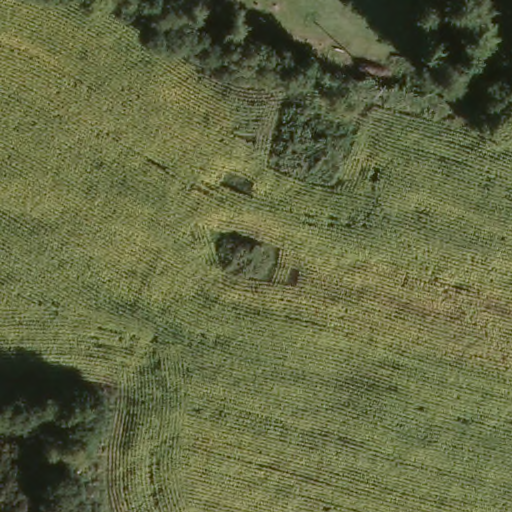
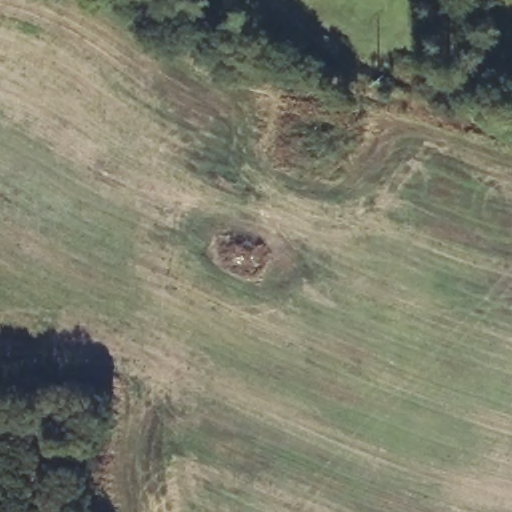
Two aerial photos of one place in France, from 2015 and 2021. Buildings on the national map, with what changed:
unchanged [(472,88),(478,67),(512,76),(512,98),(472,88)]

